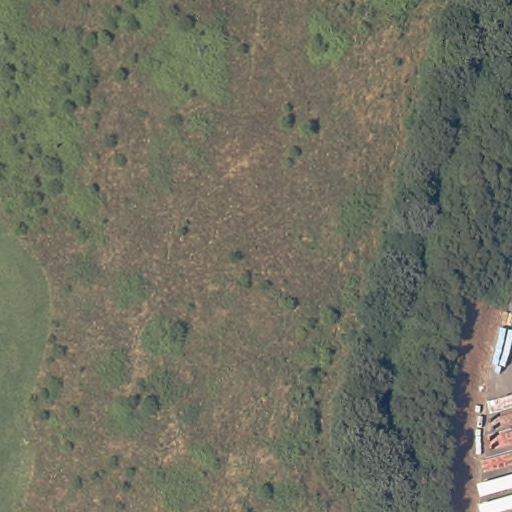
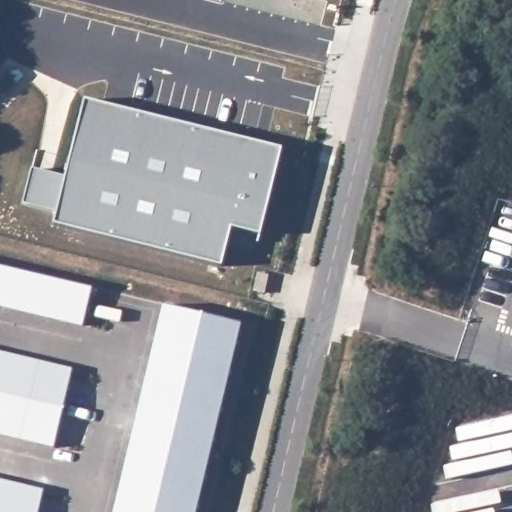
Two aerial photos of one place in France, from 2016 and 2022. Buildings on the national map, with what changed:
new [(65,176),(84,98),(282,149),(259,236),(230,229),(222,266),(52,225),(55,211),(23,204),(32,167),(65,176)]
new [(0,305),(0,265),(94,287),(84,325),(0,305)]
new [(164,307),(240,324),(196,512),(114,512),(164,307)]
new [(0,434),(0,353),(73,371),(55,448),(0,434)]
new [(0,481),(44,492),(39,512),(0,512),(0,481)]

